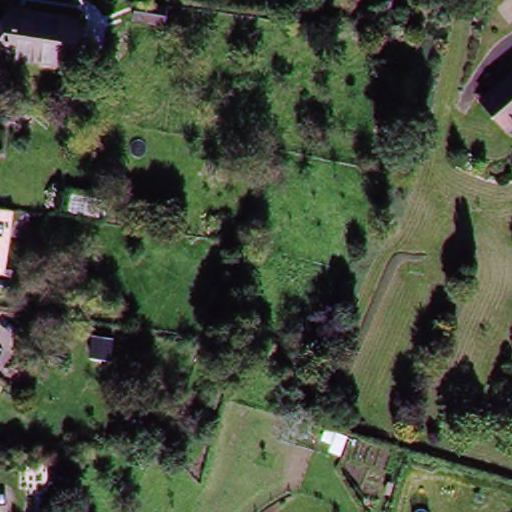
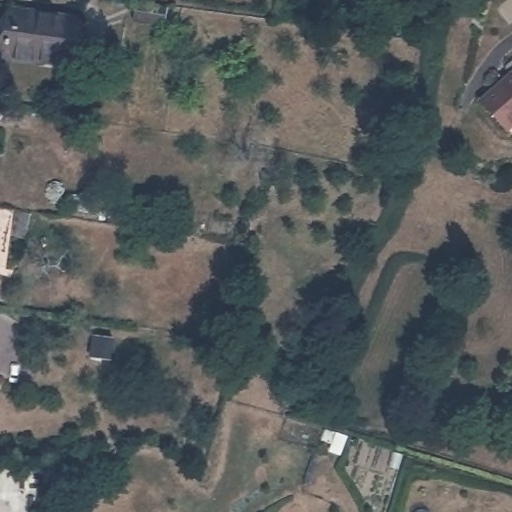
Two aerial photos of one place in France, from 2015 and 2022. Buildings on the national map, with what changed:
unchanged [(161,10),(159,27),(129,22),(132,5),(161,10)]
unchanged [(85,23),(79,72),(11,62),(17,15),(85,23)]
unchanged [(512,74),(512,129),(508,132),(481,100),(512,74)]
unchanged [(390,109),(385,135),(370,132),(375,106),(390,109)]
unchanged [(24,213),(16,263),(1,261),(9,211),(24,213)]

